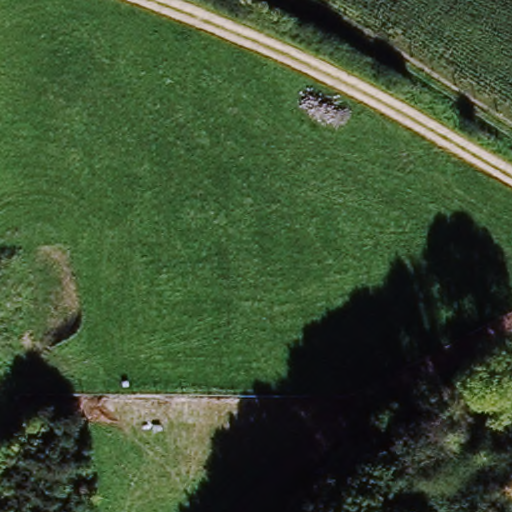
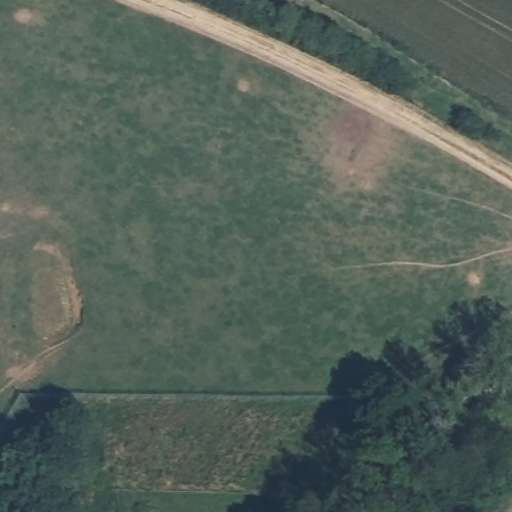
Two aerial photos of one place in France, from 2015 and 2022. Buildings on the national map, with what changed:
[]

